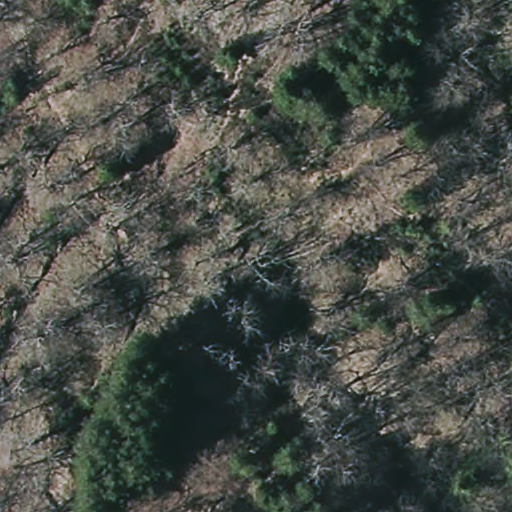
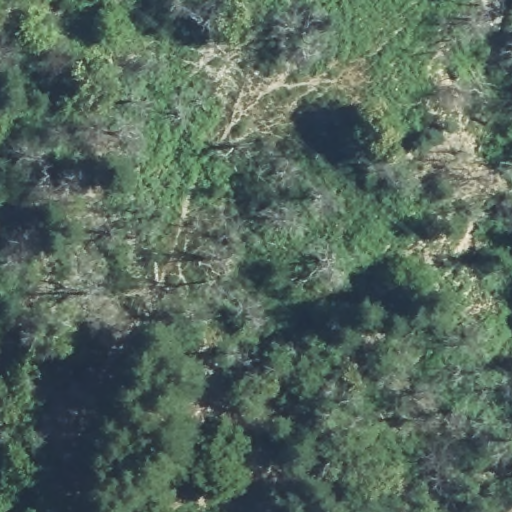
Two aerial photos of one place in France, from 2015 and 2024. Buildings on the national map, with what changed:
[]

